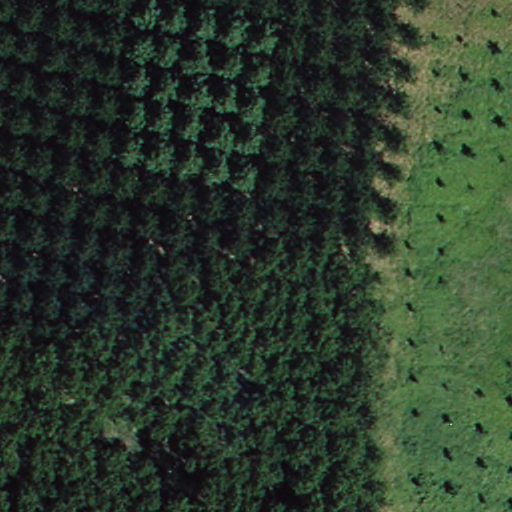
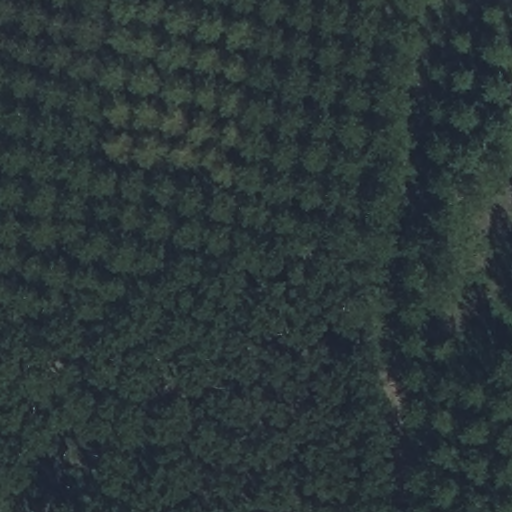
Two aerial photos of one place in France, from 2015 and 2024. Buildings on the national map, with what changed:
[]

